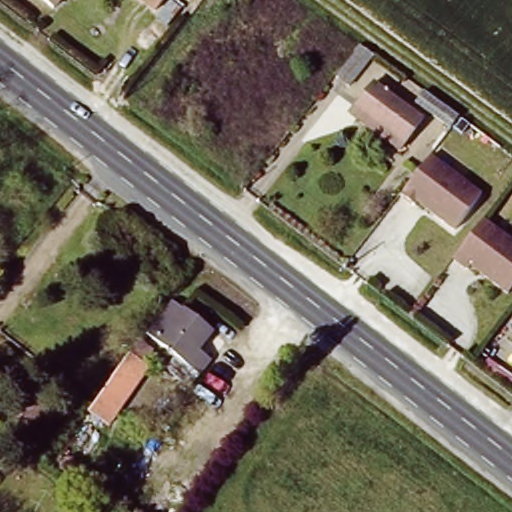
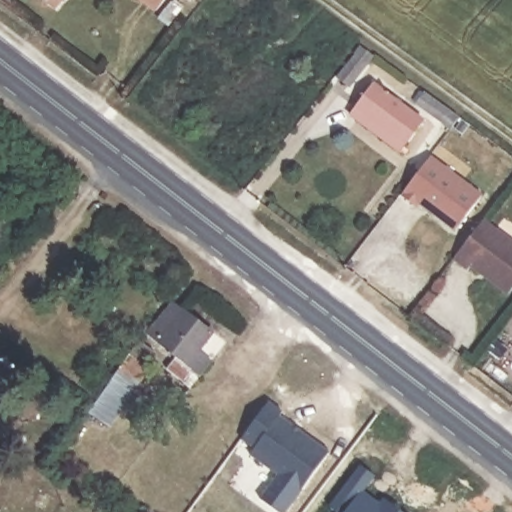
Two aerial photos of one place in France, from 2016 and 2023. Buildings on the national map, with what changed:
unchanged [(35,10),(43,0),(62,0),(47,19),(35,10)]
unchanged [(140,0),(164,0),(155,12),(140,0)]
unchanged [(369,64),(348,89),(337,80),(357,55),(369,64)]
unchanged [(387,135),(350,107),(370,84),(407,111),(387,135)]
unchanged [(490,191),(463,226),(424,197),(419,201),(407,192),(438,150),(490,191)]
unchanged [(512,231),(512,286),(477,259),(472,263),(462,256),(492,216),(512,231)]
unchanged [(185,361),(142,332),(167,297),(210,326),(195,346),(207,355),(196,368),(192,373),(190,372),(187,375),(190,377),(188,381),(185,378),(177,372),(185,361)]
unchanged [(140,387),(132,397),(122,389),(139,365),(150,373),(150,375),(157,380),(147,392),(140,387)]
new [(291,512),(281,512),(262,498),(281,474),(253,452),(256,449),(243,438),(272,401),(287,412),(285,417),(298,425),(295,427),(300,431),(302,430),(333,452),(291,512)]

